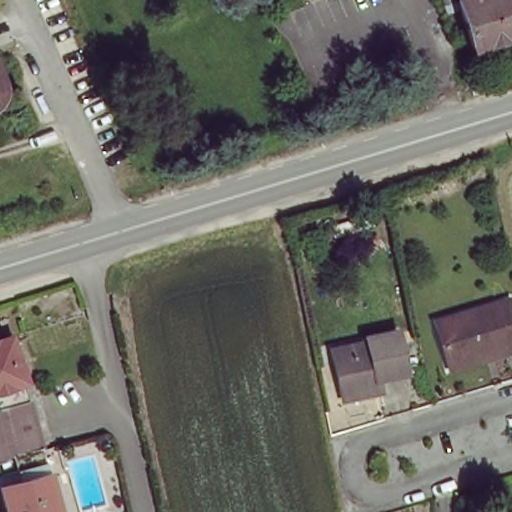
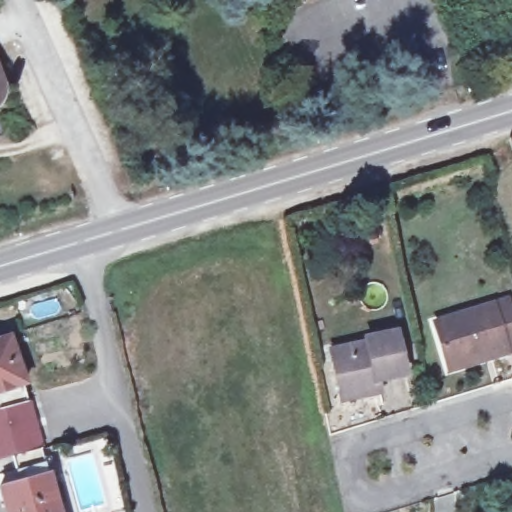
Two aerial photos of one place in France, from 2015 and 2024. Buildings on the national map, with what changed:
demolished [(512,0),(512,37),(477,49),(464,0),(446,5),(443,0),(512,0)]
unchanged [(15,86),(14,90),(13,94),(13,96),(9,100),(5,103),(0,106),(0,58),(4,56),(15,86)]
unchanged [(512,298),(512,350),(498,355),(495,350),(454,364),(442,321),(512,298)]
unchanged [(412,366),(385,372),(388,387),(371,392),(366,381),(344,387),(334,345),(369,337),(368,333),(403,324),(412,366)]
unchanged [(60,512),(10,512),(2,480),(21,475),(14,452),(0,456),(0,403),(1,403),(0,397),(0,330),(11,327),(60,512)]

